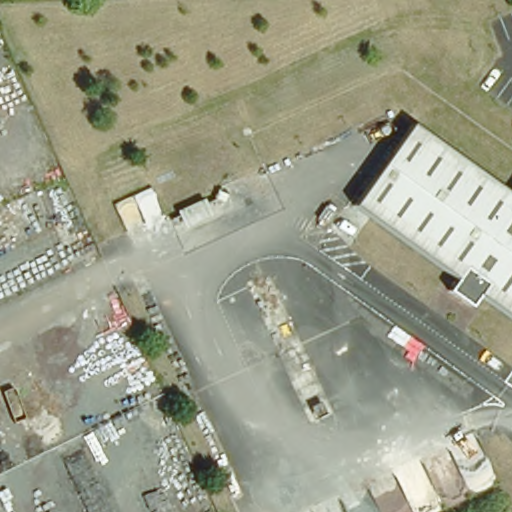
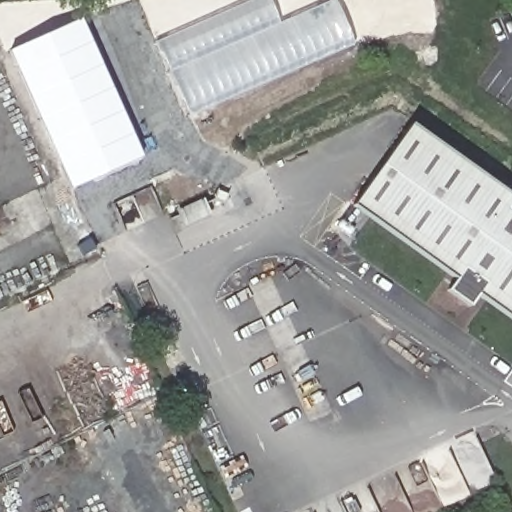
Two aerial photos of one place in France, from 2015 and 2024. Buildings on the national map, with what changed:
new [(266,0),(277,23),(332,0),(352,45),(184,116),(151,43),(250,0),(266,0)]
new [(81,19),(142,157),(68,191),(9,51),(81,19)]
unchanged [(471,307),(448,289),(455,279),(352,208),(408,126),(511,198),(512,197),(512,318),(479,296),(471,307)]
unchanged [(221,186),(232,189),(227,202),(216,197),(221,186)]
unchanged [(215,229),(195,238),(182,206),(201,198),(215,229)]

